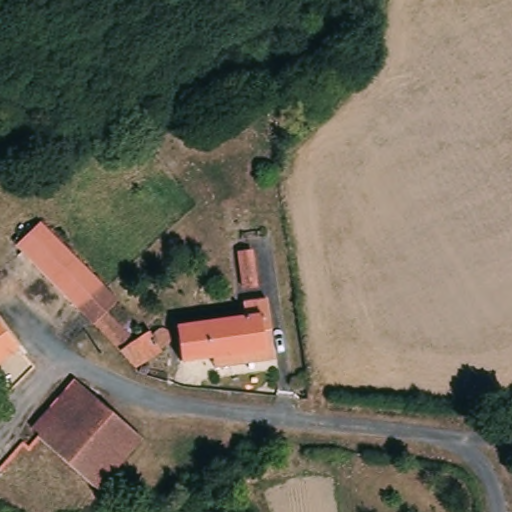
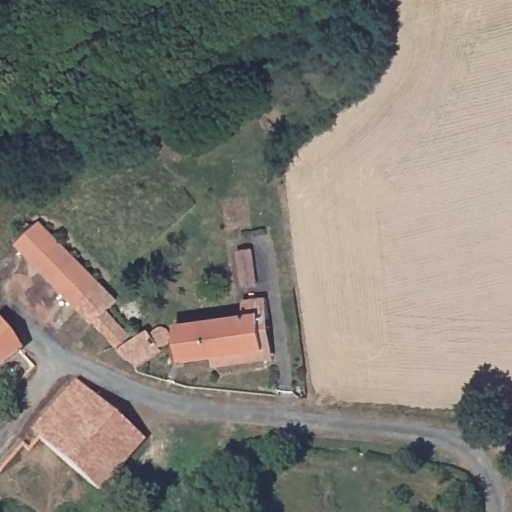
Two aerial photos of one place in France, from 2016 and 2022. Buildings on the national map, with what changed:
unchanged [(83,306),(24,245),(47,224),(58,235),(104,284),(83,306)]
unchanged [(259,280),(241,283),(237,250),(252,247),(259,280)]
unchanged [(121,302),(114,310),(138,338),(146,328),(153,332),(157,328),(163,330),(166,332),(166,337),(161,344),(164,347),(141,370),(83,306),(104,284),(121,302)]
unchanged [(220,367),(218,356),(178,365),(171,328),(246,313),(244,298),(267,295),(269,308),(275,342),(278,354),(220,367)]
unchanged [(0,354),(0,324),(16,342),(0,354)]
unchanged [(113,408),(143,438),(99,488),(41,436),(35,430),(78,377),(113,408)]

